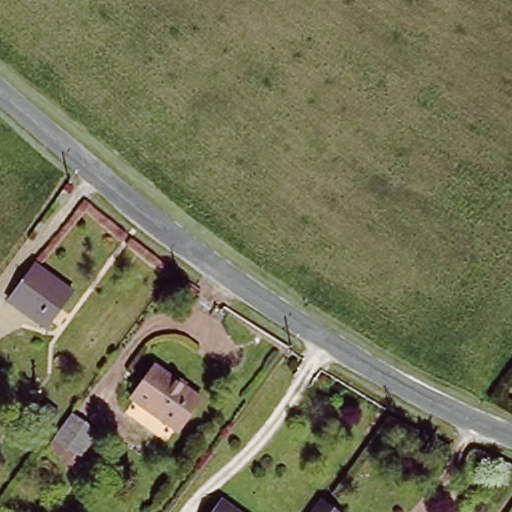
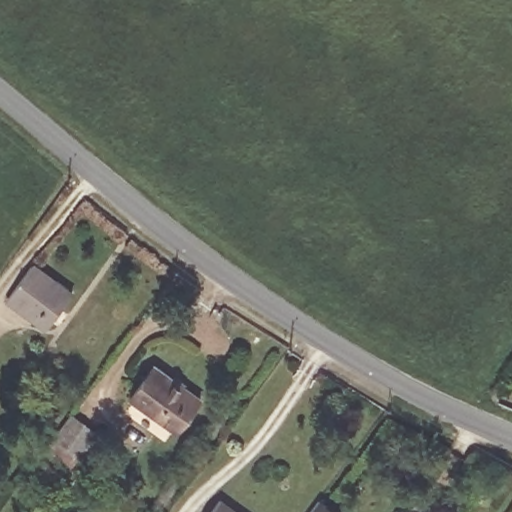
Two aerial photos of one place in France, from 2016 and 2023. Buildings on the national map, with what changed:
unchanged [(75,286),(49,321),(11,292),(38,258),(75,286)]
unchanged [(203,392),(179,425),(134,392),(158,359),(203,392)]
unchanged [(51,405),(61,413),(50,428),(40,420),(51,405)]
unchanged [(95,438),(78,463),(53,444),(70,420),(95,438)]
unchanged [(310,512),(324,493),(349,512),(310,512)]
unchanged [(211,512),(223,496),(245,512),(211,512)]

